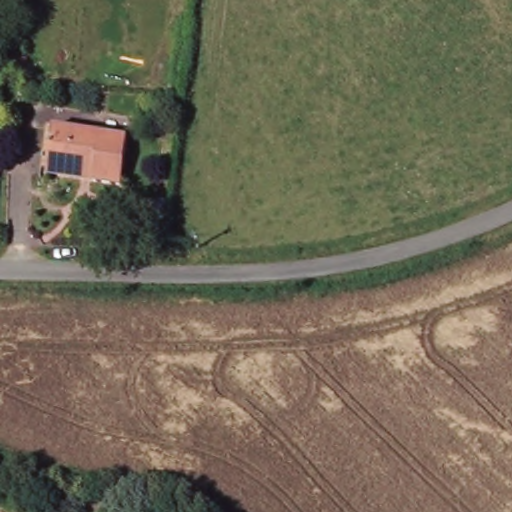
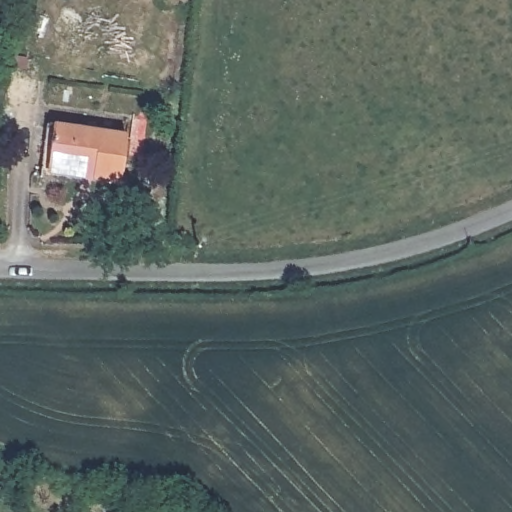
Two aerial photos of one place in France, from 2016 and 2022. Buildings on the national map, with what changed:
unchanged [(56,126),(131,134),(124,183),(50,177),(56,126)]
unchanged [(4,510),(10,512),(2,512),(4,510)]

